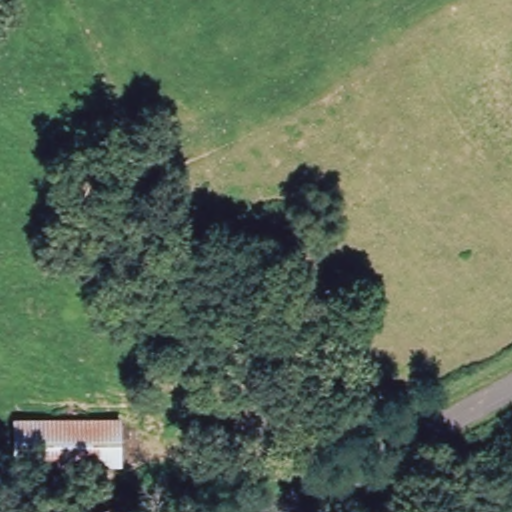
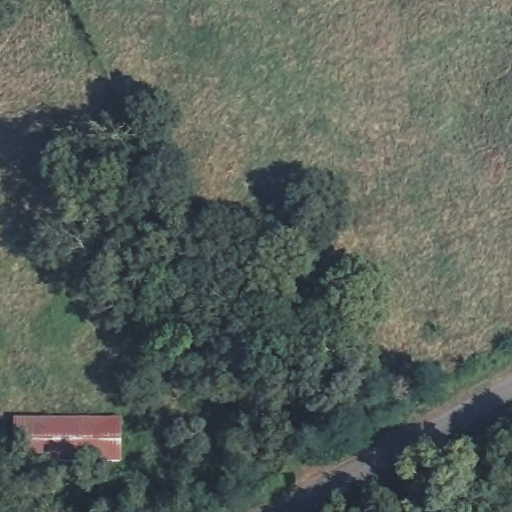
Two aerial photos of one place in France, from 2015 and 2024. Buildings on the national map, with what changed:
unchanged [(120,472),(16,473),(16,429),(119,429),(120,472)]

